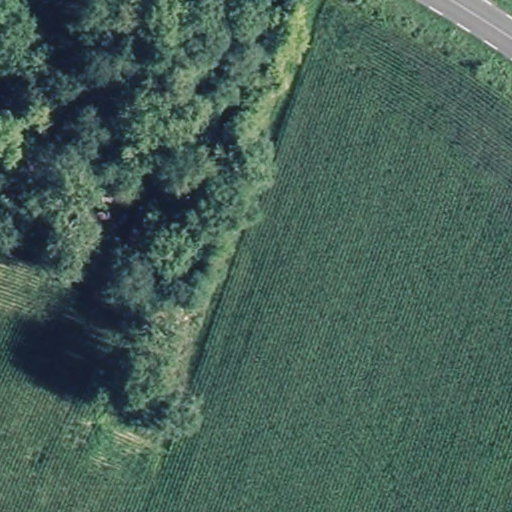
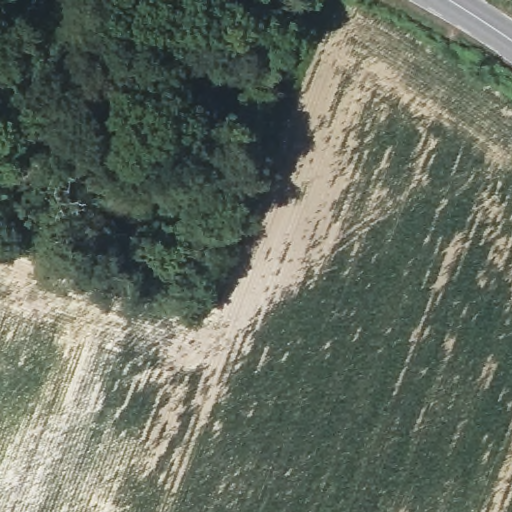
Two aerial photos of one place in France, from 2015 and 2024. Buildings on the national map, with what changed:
unchanged [(16,147),(41,169),(1,215),(0,215),(0,165),(16,147)]

